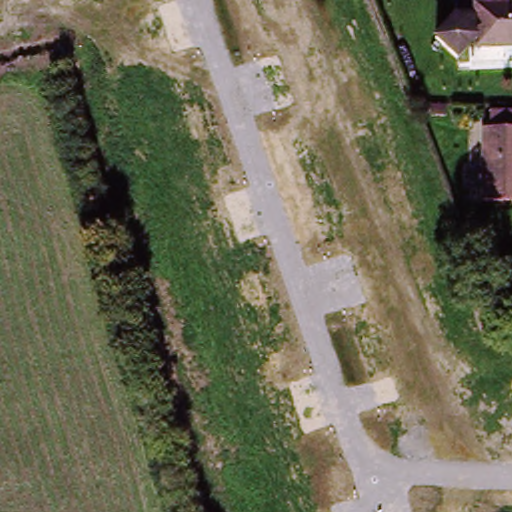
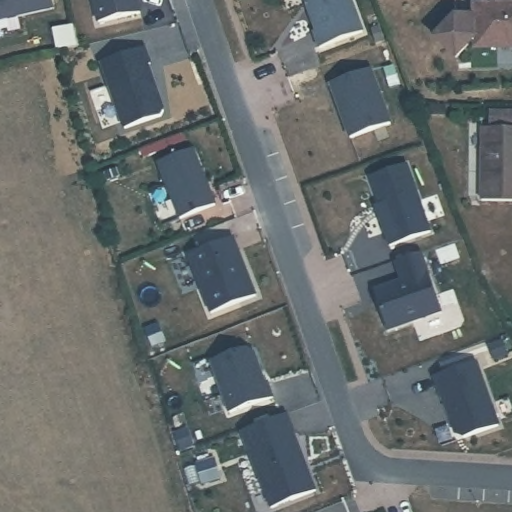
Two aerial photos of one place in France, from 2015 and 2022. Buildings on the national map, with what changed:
new [(0,21),(0,0),(52,0),(54,7),(0,21)]
new [(96,23),(90,0),(138,0),(139,13),(96,23)]
new [(320,48),(304,0),(354,0),(365,31),(320,48)]
unchanged [(512,9),(512,48),(474,47),(474,43),(475,21),(475,8),(512,9)]
unchanged [(434,43),(455,21),(475,21),(474,43),(454,63),(434,43)]
new [(146,45),(153,62),(149,65),(164,106),(161,115),(125,132),(98,63),(146,45)]
new [(395,122),(351,139),(330,84),(373,66),(395,122)]
unchanged [(487,132),(491,132),(490,117),(512,117),(512,206),(485,205),(487,132)]
new [(217,203),(179,219),(155,161),(194,146),(217,203)]
new [(432,233),(389,248),(376,205),(381,205),(370,176),(409,162),(432,233)]
new [(234,236),(258,294),(208,313),(185,255),(234,236)]
new [(444,309),(386,332),(373,290),(401,281),(394,262),(422,252),(444,309)]
new [(266,381),(268,380),(274,395),(228,415),(208,361),(246,348),(256,353),(266,381)]
new [(477,359),(502,426),(467,439),(454,433),(434,378),(477,359)]
new [(316,490),(271,509),(239,431),(287,412),(316,490)]

